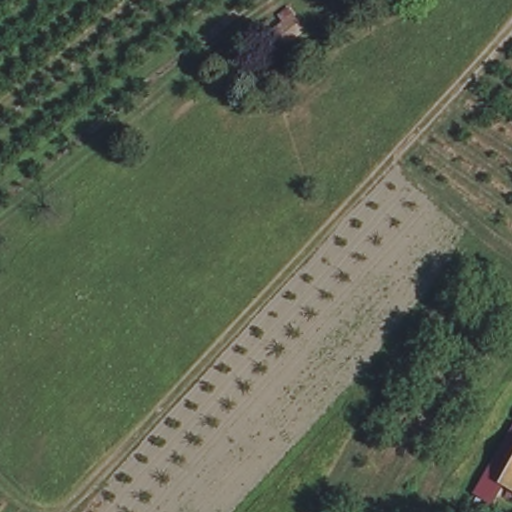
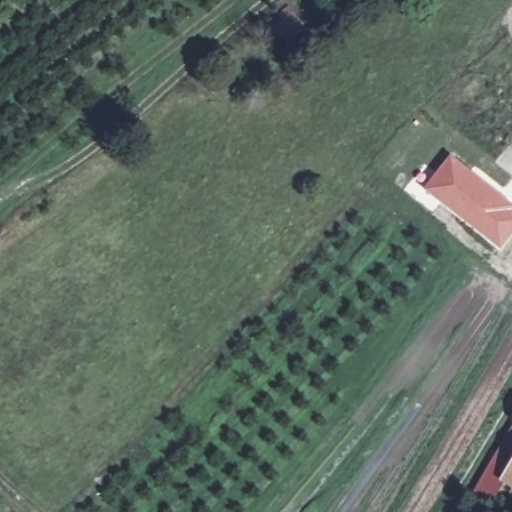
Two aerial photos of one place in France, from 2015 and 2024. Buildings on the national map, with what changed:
unchanged [(290,35),(306,23),(300,14),(318,0),(319,0),(335,20),(299,47),(290,35)]
new [(450,154),(500,192),(512,204),(512,237),(500,253),(422,189),(450,154)]
unchanged [(503,481),(512,465),(512,485),(503,481)]

